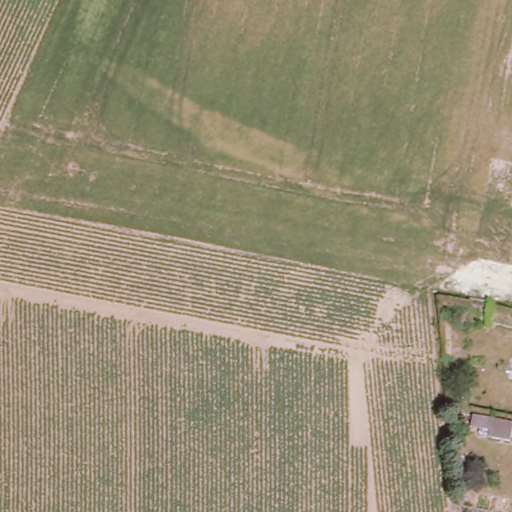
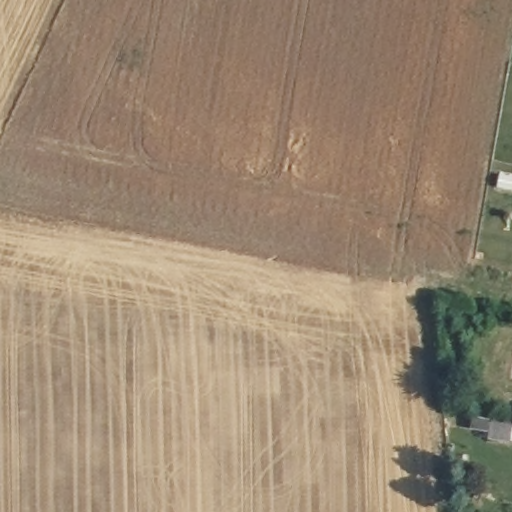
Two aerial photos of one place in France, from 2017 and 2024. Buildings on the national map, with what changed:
unchanged [(511,442),(488,438),(492,420),(512,424),(512,437),(511,442)]

